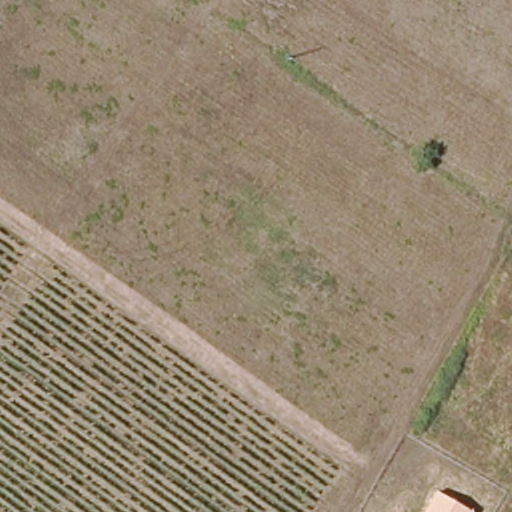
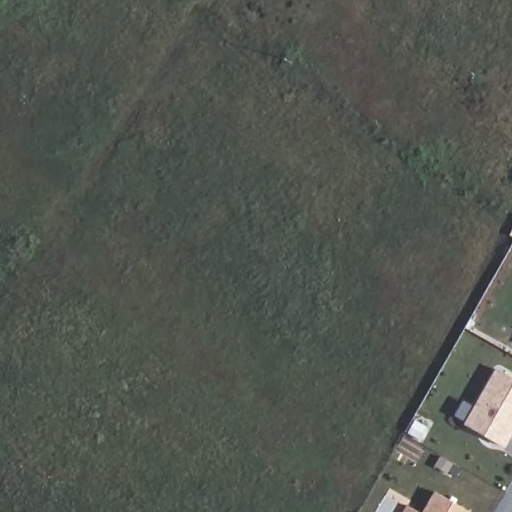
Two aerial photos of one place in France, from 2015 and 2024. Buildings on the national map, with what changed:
new [(506,448),(464,425),(496,368),(512,377),(512,438),(506,448)]
unchanged [(473,512),(424,512),(436,489),(473,511),(473,512)]

